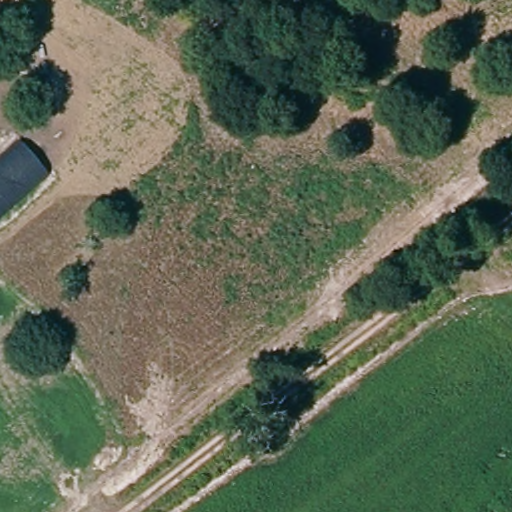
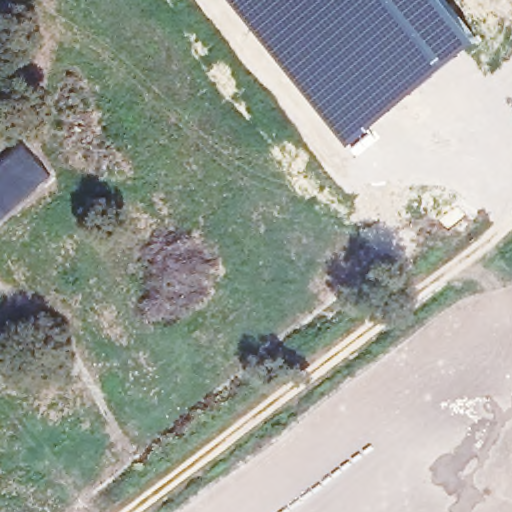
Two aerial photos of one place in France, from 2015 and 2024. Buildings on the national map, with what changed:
new [(478,39),(385,117),(351,149),(227,0),(447,0),(478,39)]
unchanged [(24,142),(50,174),(0,221),(0,163),(24,142)]

